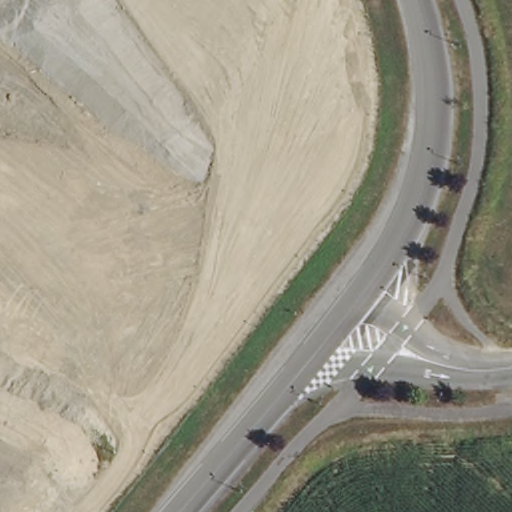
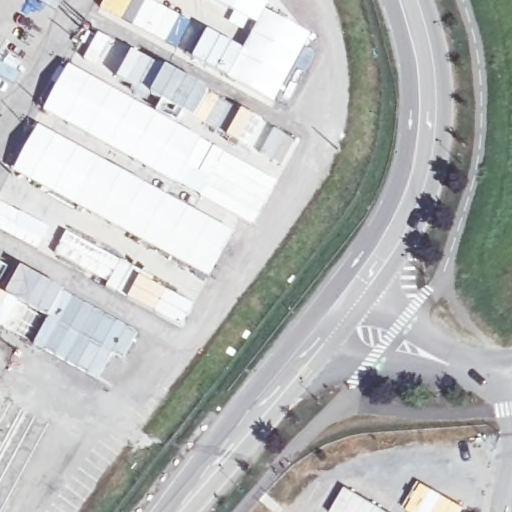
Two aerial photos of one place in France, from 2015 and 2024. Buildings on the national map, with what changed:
new [(120,19),(97,8),(102,0),(151,0),(189,21),(175,47),(120,19)]
new [(254,24),(211,0),(271,0),(266,9),(254,24)]
new [(243,48),(254,24),(266,9),(311,34),(303,53),(274,104),(227,78),(243,48)]
new [(206,29),(243,48),(227,78),(191,57),(206,29)]
new [(96,31),(114,40),(97,68),(80,57),(96,31)]
new [(131,49),(156,64),(140,91),(113,78),(131,49)]
new [(69,63),(278,181),(252,226),(43,111),(69,63)]
new [(218,131),(193,120),(146,94),(163,66),(209,92),(232,105),(218,131)]
new [(39,124),(193,208),(234,232),(208,278),(60,199),(12,171),(39,124)]
new [(272,128),(296,141),(282,164),(259,152),(272,128)]
new [(35,248),(0,230),(0,200),(48,225),(35,248)]
new [(64,229),(133,267),(118,294),(104,286),(105,283),(51,252),(64,229)]
new [(63,290),(46,317),(21,305),(7,330),(0,327),(0,292),(3,294),(20,266),(63,290)]
new [(181,328),(153,313),(125,298),(138,275),(166,290),(193,305),(181,328)]
new [(46,317),(63,290),(137,331),(123,358),(111,353),(96,378),(30,343),(46,317)]

